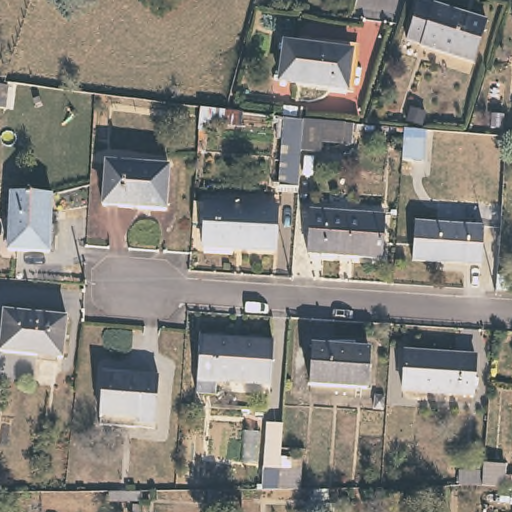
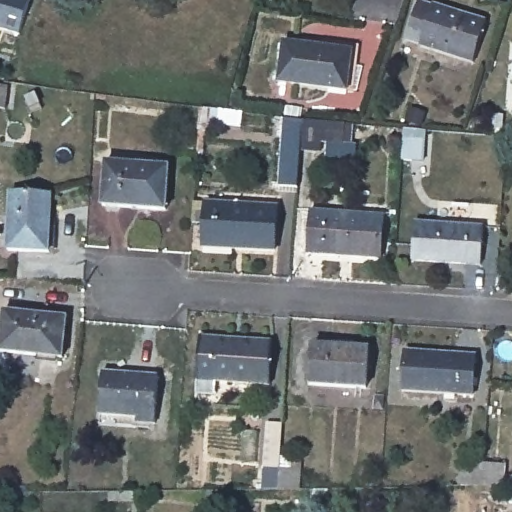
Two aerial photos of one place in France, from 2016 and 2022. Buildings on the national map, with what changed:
new [(0,29),(0,0),(30,0),(20,35),(0,29)]
unchanged [(468,53),(416,36),(417,33),(402,29),(411,0),(444,0),(482,12),(468,53)]
unchanged [(352,46),(347,83),(282,73),(285,37),(352,46)]
unchanged [(1,102),(0,102),(0,81),(2,81),(1,102)]
unchanged [(300,115),(297,148),(294,186),(276,185),(281,114),(300,115)]
unchanged [(350,120),(348,138),(340,137),(340,141),(318,139),(318,149),(297,148),(300,115),(342,120),(350,120)]
unchanged [(426,144),(426,163),(404,162),(405,142),(426,144)]
unchanged [(170,160),(166,205),(101,201),(105,155),(170,160)]
unchanged [(55,187),(51,244),(9,241),(14,184),(55,187)]
unchanged [(277,196),(275,241),(205,236),(209,191),(277,196)]
unchanged [(385,206),(382,248),(311,243),(313,202),(385,206)]
unchanged [(455,215),(485,217),(483,255),(413,250),(416,213),(455,215)]
unchanged [(64,316),(61,357),(0,353),(2,312),(64,316)]
unchanged [(269,336),(267,379),(195,374),(197,331),(269,336)]
unchanged [(371,346),(368,385),(311,382),(314,342),(371,346)]
unchanged [(478,353),(475,393),(406,388),(408,348),(478,353)]
unchanged [(159,370),(155,418),(135,418),(136,413),(100,410),(104,365),(159,370)]
unchanged [(281,467),(266,467),(268,422),(283,423),(281,467)]
unchanged [(480,489),(482,467),(486,466),(503,466),(503,488),(485,489),(480,489)]
unchanged [(301,489),(280,489),(281,467),(302,468),(301,489)]

